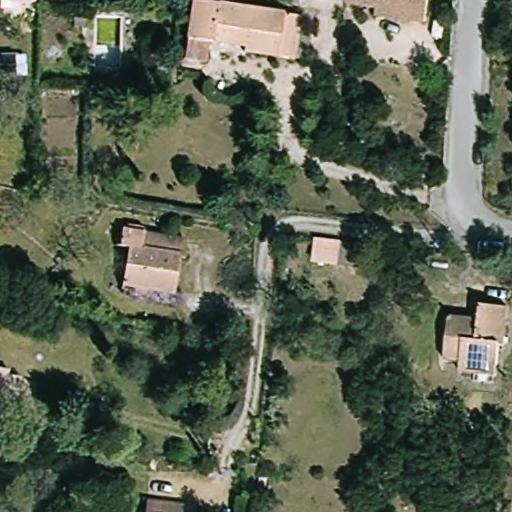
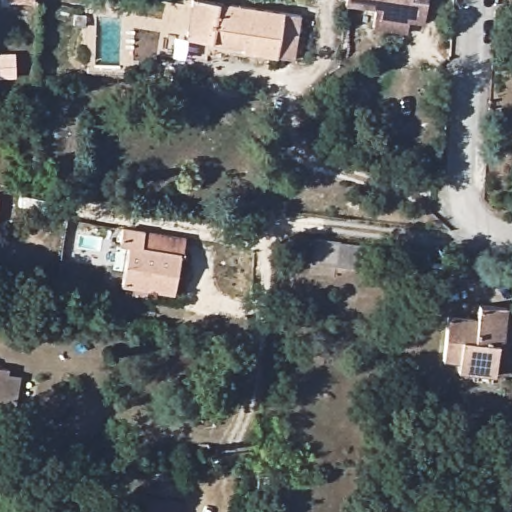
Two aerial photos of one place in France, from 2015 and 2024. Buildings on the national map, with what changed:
unchanged [(9,1),(9,0),(35,0),(35,2),(9,1)]
unchanged [(296,36),(308,38),(307,63),(294,61),(293,67),(242,58),(243,51),(183,40),(190,0),(221,0),(300,14),(296,36)]
unchanged [(345,4),(344,4),(344,0),(427,0),(423,25),(406,22),(373,17),(374,9),(345,4)]
unchanged [(119,285),(126,242),(115,240),(117,226),(149,231),(147,242),(183,249),(175,295),(119,285)]
unchanged [(362,273),(332,271),(335,246),(365,249),(362,273)]
unchanged [(439,366),(444,323),(474,327),(476,310),(504,312),(502,329),(492,327),(489,347),(501,349),(498,373),(439,366)]
unchanged [(8,375),(25,376),(19,404),(0,401),(0,366),(10,367),(8,375)]
unchanged [(143,497),(184,502),(183,512),(140,512),(143,497)]

